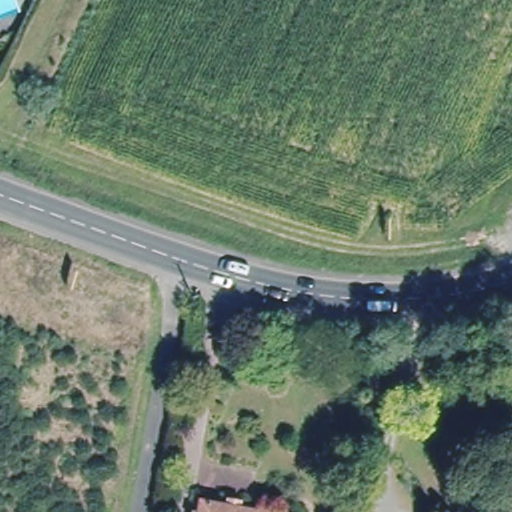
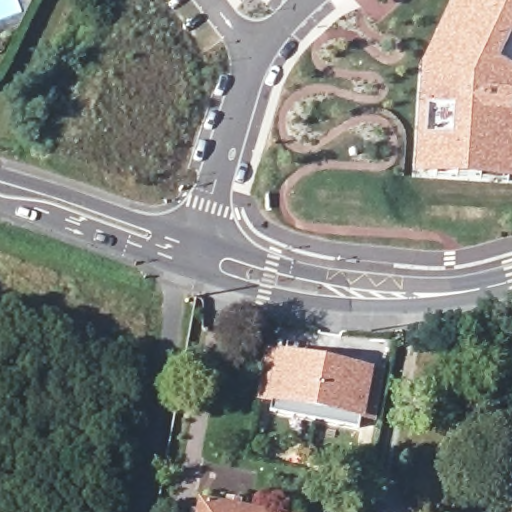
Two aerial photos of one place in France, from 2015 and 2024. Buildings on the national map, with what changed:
new [(422,65),(453,0),(512,0),(512,179),(415,175),(422,65)]
new [(276,350),(374,367),(385,369),(377,421),(366,420),(266,401),(256,398),(266,348),(276,350)]
unchanged [(217,505),(219,497),(238,502),(237,508),(252,512),(195,512),(196,500),(217,505)]
unchanged [(193,512),(186,512),(186,510),(193,512)]

